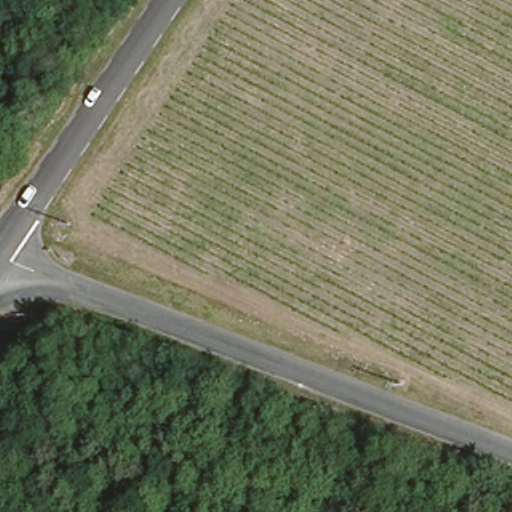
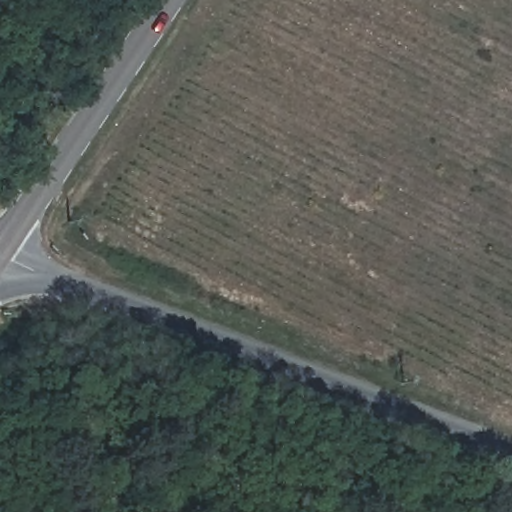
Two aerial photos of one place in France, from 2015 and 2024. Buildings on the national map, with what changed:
unchanged [(77,220),(72,228),(63,222),(68,214),(77,220)]

